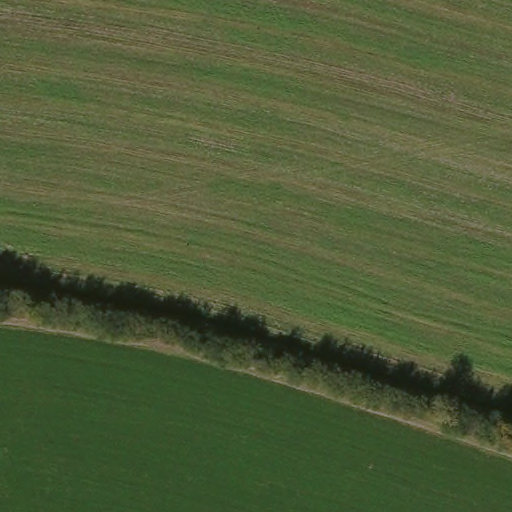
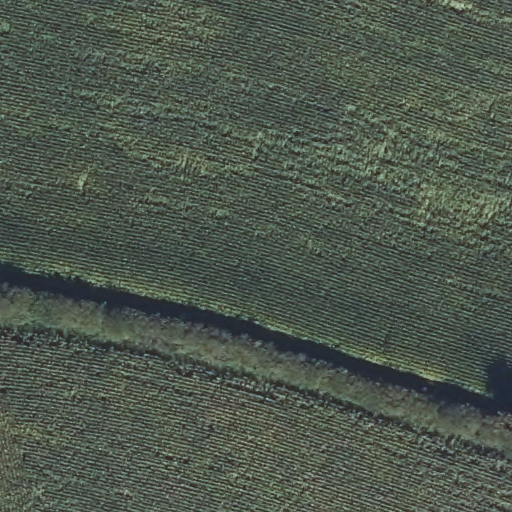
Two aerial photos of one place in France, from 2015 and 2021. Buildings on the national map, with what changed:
[]

